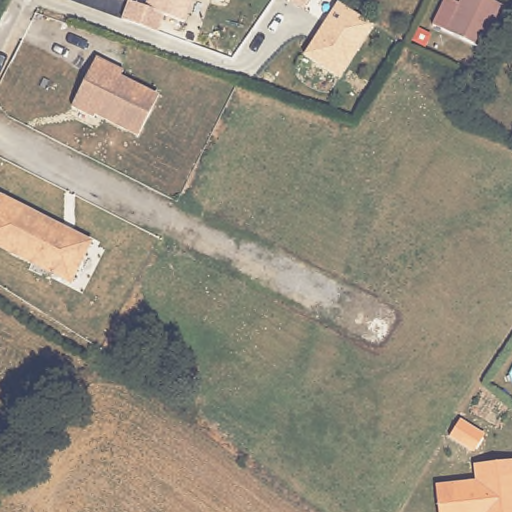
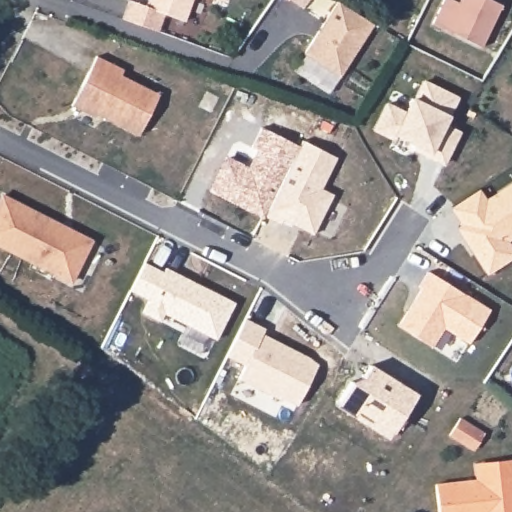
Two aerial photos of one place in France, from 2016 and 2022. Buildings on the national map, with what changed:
unchanged [(144,9),(147,0),(191,0),(183,24),(163,17),(157,34),(122,22),(128,4),(144,9)]
unchanged [(215,0),(222,0),(222,2),(215,0)]
unchanged [(291,0),(310,0),(303,9),(291,0)]
unchanged [(447,28),(432,24),(443,0),(453,0),(460,3),(447,28)]
unchanged [(461,0),(495,0),(503,4),(482,47),(447,28),(461,0)]
new [(339,4),(374,27),(338,79),(303,56),(339,4)]
unchanged [(95,119),(72,108),(97,59),(124,72),(122,78),(160,97),(139,138),(105,121),(96,116),(95,119)]
new [(412,99),(415,101),(424,82),(454,96),(442,124),(456,132),(441,163),(414,149),(409,160),(387,149),(392,137),(373,129),(386,103),(406,113),(412,99)]
new [(208,191),(223,161),(247,172),(257,151),(250,149),(260,130),(298,149),(263,217),(208,191)]
new [(298,149),(303,140),(337,157),(322,189),(334,194),(314,235),(292,224),(291,228),(263,217),(298,149)]
new [(480,188),(486,198),(512,182),(512,240),(510,242),(512,245),(512,259),(487,277),(456,227),(461,225),(450,208),(480,188)]
unchanged [(72,234),(90,243),(69,283),(0,248),(0,198),(1,197),(62,229),(72,234)]
new [(165,273),(167,268),(184,278),(197,287),(234,307),(214,342),(163,314),(159,322),(142,312),(149,300),(131,290),(146,262),(165,273)]
new [(427,271),(491,309),(468,343),(443,328),(432,346),(397,326),(420,289),(417,288),(427,271)]
new [(245,319),(264,328),(260,337),(267,341),(269,337),(317,363),(296,403),(282,394),(279,398),(239,380),(245,365),(227,356),(245,319)]
new [(462,419),(483,432),(472,450),(451,436),(462,419)]
unchanged [(475,480),(473,464),(512,459),(512,512),(437,512),(434,486),(475,480)]

